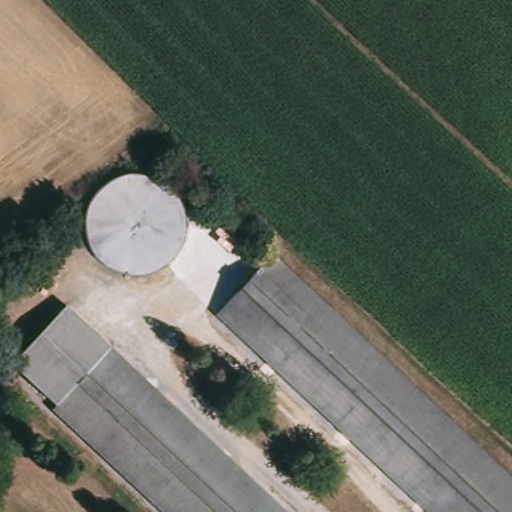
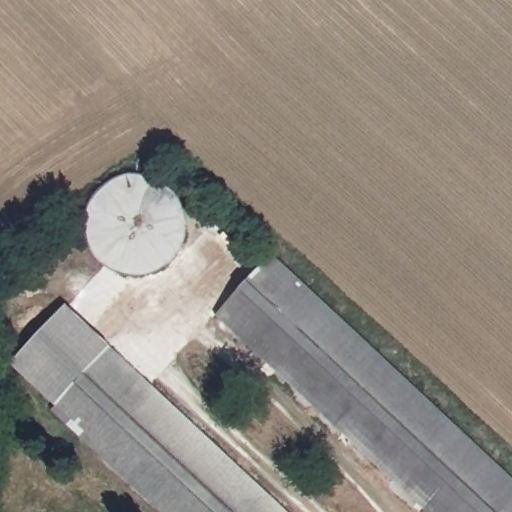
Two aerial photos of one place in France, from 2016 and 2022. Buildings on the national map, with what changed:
unchanged [(128,273),(107,264),(96,253),(87,234),(87,213),(94,196),(107,180),(123,175),(136,174),(151,173),(165,179),(179,194),(185,208),(185,226),(178,249),(170,259),(161,269),(148,274),(128,273)]
unchanged [(512,481),(512,512),(423,512),(216,318),(273,255),(512,481)]
unchanged [(61,406),(34,381),(16,364),(69,307),(88,324),(114,348),(112,350),(286,512),(170,512),(58,408),(61,406)]

